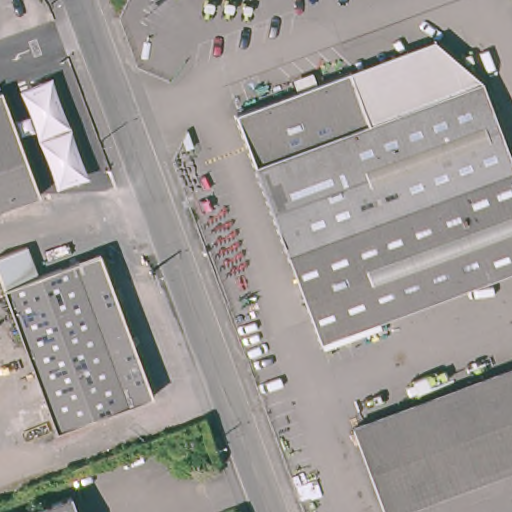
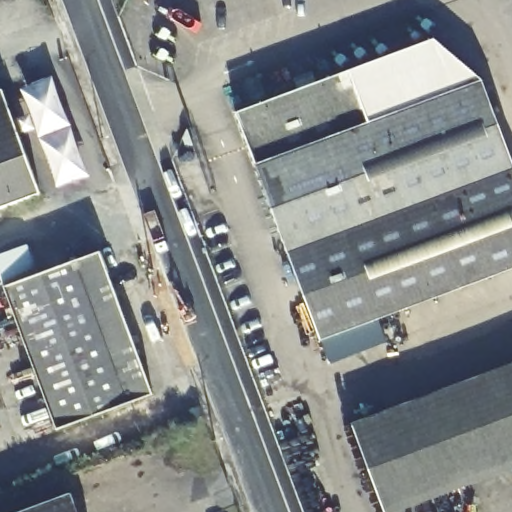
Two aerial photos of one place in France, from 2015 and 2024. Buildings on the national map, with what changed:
unchanged [(434,40),(480,81),(371,122),(350,72),(434,40)]
unchanged [(349,70),(371,122),(252,166),(231,113),(349,70)]
unchanged [(252,168),(252,166),(371,122),(480,81),(512,168),(512,274),(492,281),(459,195),(347,237),(379,324),(319,346),(252,168)]
unchanged [(37,195),(0,209),(0,91),(37,195)]
unchanged [(492,281),(379,324),(347,237),(459,195),(492,281)]
unchanged [(23,247),(34,276),(98,253),(110,286),(153,396),(55,433),(12,322),(0,292),(0,255),(23,247)]
unchanged [(512,469),(396,512),(380,512),(350,425),(512,365),(512,469)]
unchanged [(79,512),(21,512),(72,493),(79,512)]

